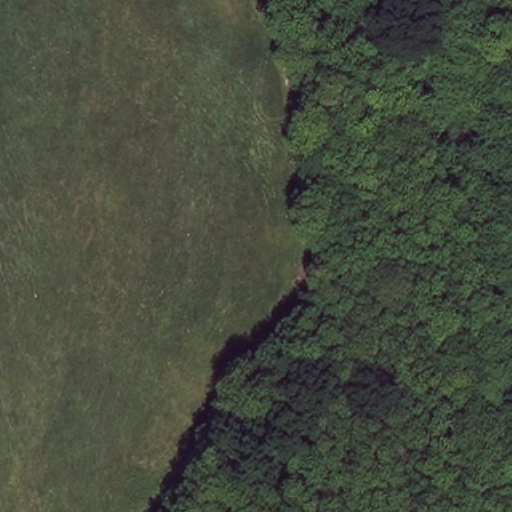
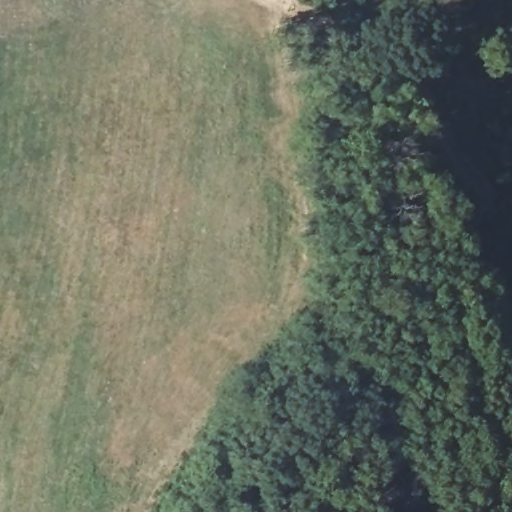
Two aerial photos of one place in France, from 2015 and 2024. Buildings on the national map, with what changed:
[]

